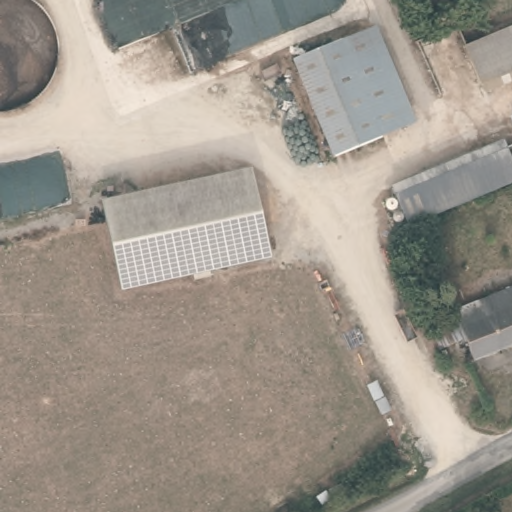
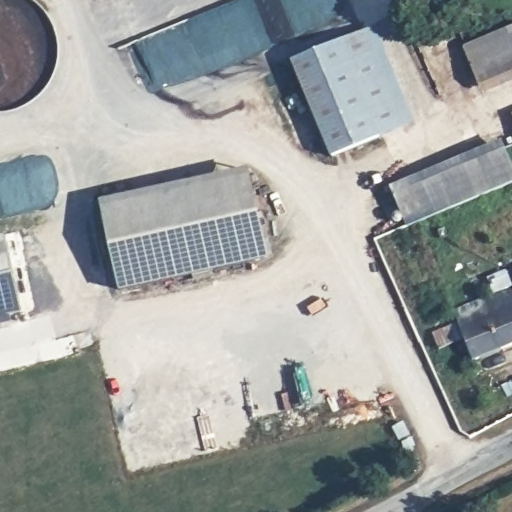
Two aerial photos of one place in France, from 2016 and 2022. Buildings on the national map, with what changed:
unchanged [(512,29),(512,84),(487,94),(467,46),(512,29)]
unchanged [(298,63),(368,35),(403,129),(333,156),(298,63)]
unchanged [(503,120),(512,116),(512,139),(503,120)]
unchanged [(410,228),(395,189),(506,145),(512,159),(512,188),(410,228)]
unchanged [(267,259),(120,290),(101,203),(248,170),(267,259)]
new [(0,317),(0,236),(6,235),(22,313),(0,317)]
unchanged [(421,325),(512,290),(512,351),(472,367),(460,346),(435,356),(421,325)]
unchanged [(494,421),(472,425),(467,397),(489,393),(494,421)]

